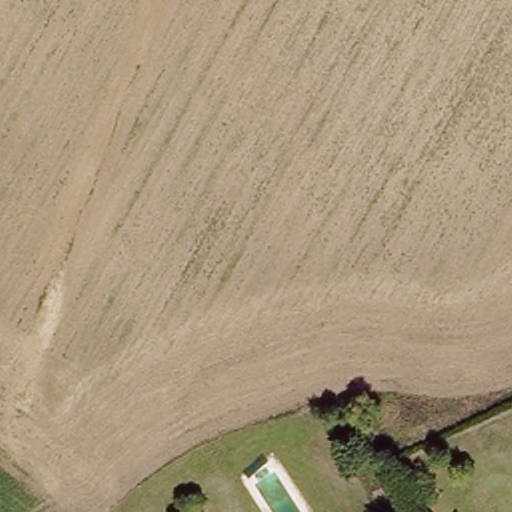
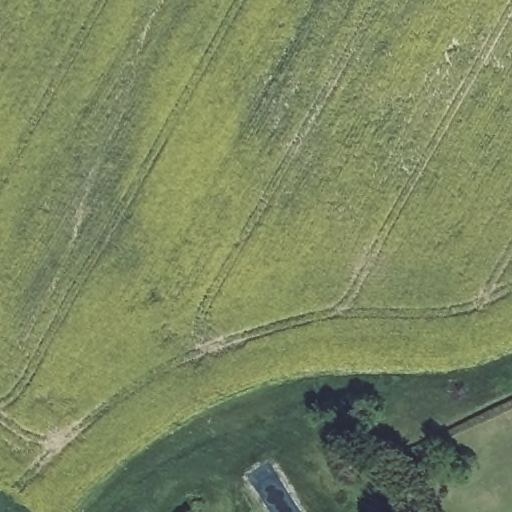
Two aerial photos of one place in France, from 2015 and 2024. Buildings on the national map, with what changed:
[]

